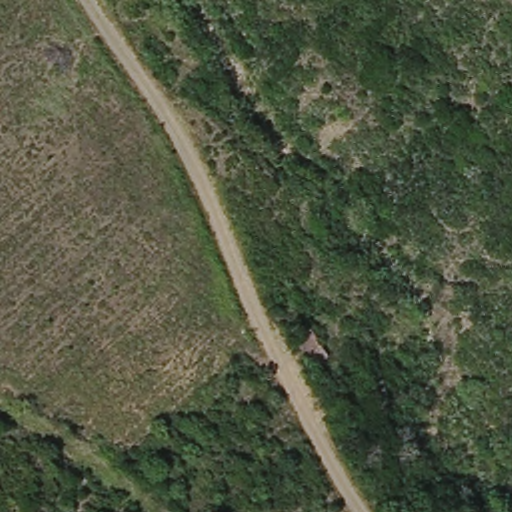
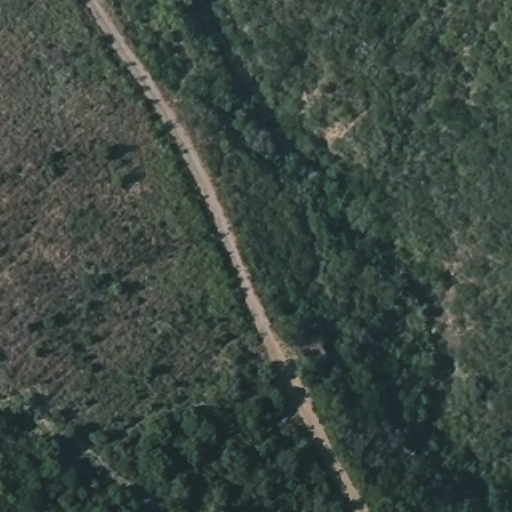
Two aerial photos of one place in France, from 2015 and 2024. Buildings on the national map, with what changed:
unchanged [(316,330),(331,349),(316,361),(299,342),(316,330)]

